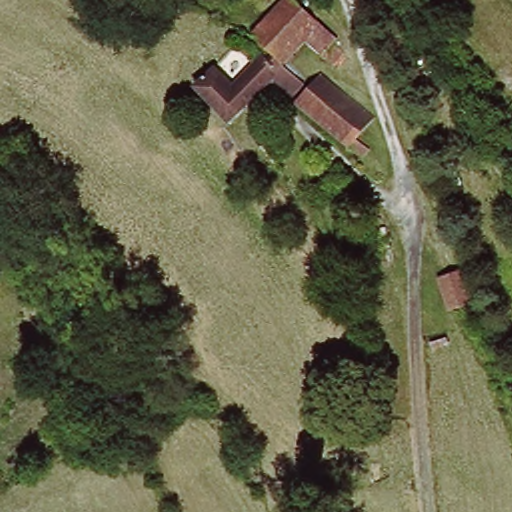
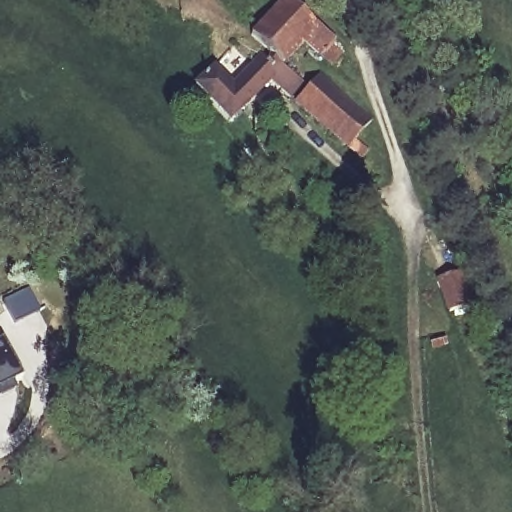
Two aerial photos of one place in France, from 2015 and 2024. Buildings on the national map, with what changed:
unchanged [(275,78),(235,120),(200,86),(220,66),(238,84),(272,49),(255,34),(288,0),(301,0),(342,38),(337,43),(348,52),(337,64),(310,40),(287,65),(309,85),(297,98),(275,78)]
unchanged [(324,74),(378,118),(361,138),(375,149),(369,157),(301,102),(324,74)]
unchanged [(465,270),(478,309),(458,316),(445,277),(465,270)]
new [(27,287),(40,309),(13,323),(1,301),(27,287)]
new [(0,392),(0,383),(0,339),(18,372),(7,379),(11,386),(0,392)]

